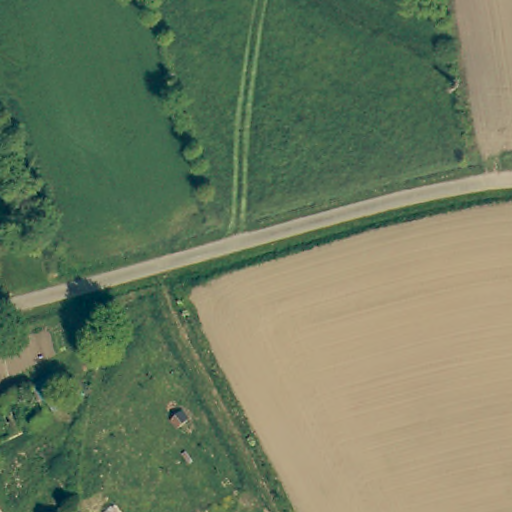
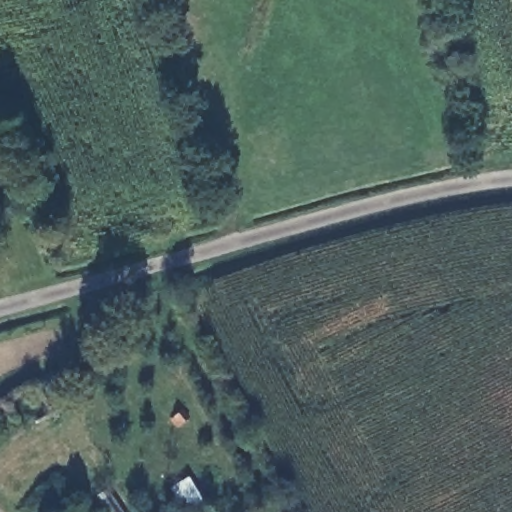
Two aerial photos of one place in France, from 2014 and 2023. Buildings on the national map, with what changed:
unchanged [(0,446),(0,404),(9,400),(28,433),(0,446)]

